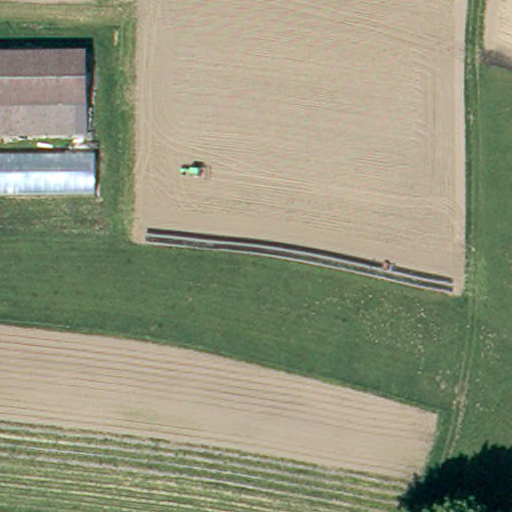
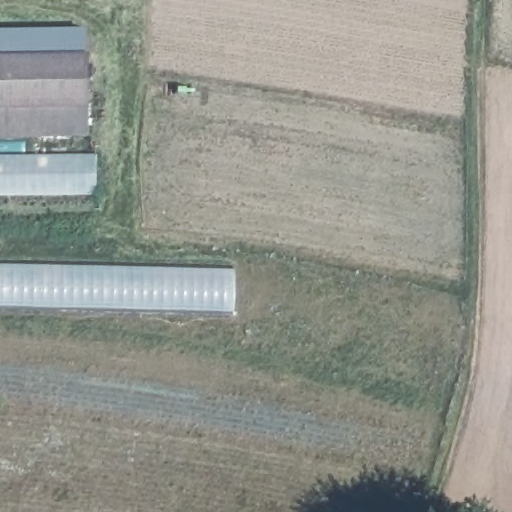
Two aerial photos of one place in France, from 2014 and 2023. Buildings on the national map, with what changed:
unchanged [(82,45),(85,96),(0,103),(0,52),(82,45)]
unchanged [(86,136),(0,137),(0,103),(85,96),(86,136)]
unchanged [(95,152),(95,192),(0,193),(0,155),(95,152)]
new [(234,266),(233,310),(0,305),(0,261),(234,266)]

